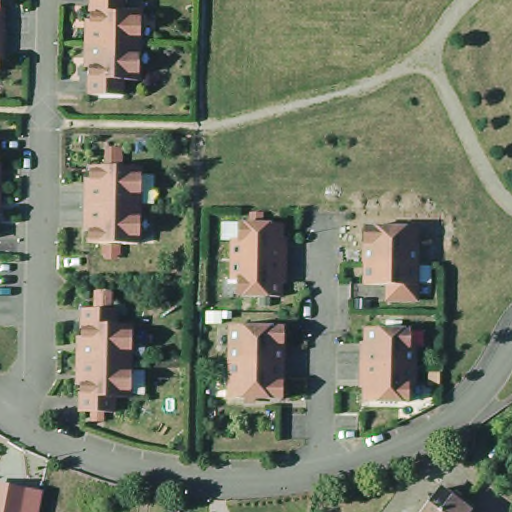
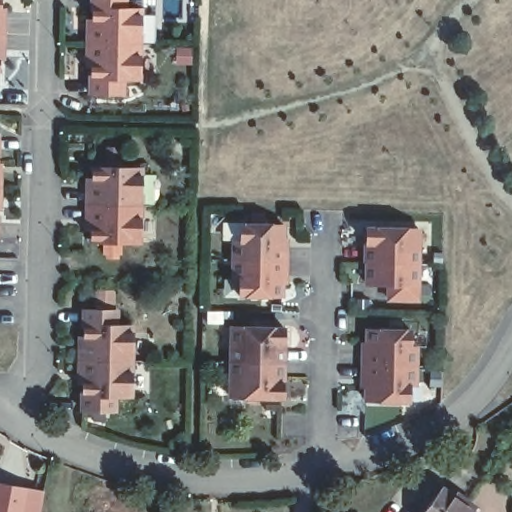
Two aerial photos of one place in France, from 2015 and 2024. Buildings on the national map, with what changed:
unchanged [(83,32),(88,32),(88,0),(122,0),(122,12),(137,12),(137,48),(82,47),(83,32)]
unchanged [(2,38),(0,38),(0,22),(2,22),(2,38)]
unchanged [(1,53),(0,53),(0,38),(2,38),(1,53)]
unchanged [(137,48),(136,84),(120,84),(120,99),(87,98),(87,62),(82,62),(82,47),(137,48)]
unchanged [(4,171),(9,172),(8,186),(0,186),(0,135),(4,135),(4,171)]
unchanged [(92,219),(87,219),(87,203),(87,188),(93,188),(93,167),(137,167),(142,167),(142,205),(141,241),(135,241),(92,240),(92,219)]
unchanged [(7,201),(2,201),(2,237),(0,237),(0,186),(8,186),(7,201)]
unchanged [(284,282),(284,295),(240,294),(240,277),(235,277),(235,258),(235,239),(242,239),(242,222),(285,224),(285,237),(288,237),(288,245),(287,260),(287,275),(287,282),(284,282)]
unchanged [(415,228),(415,263),(393,262),(363,262),(362,262),(362,227),(415,228)]
unchanged [(393,262),(415,263),(414,299),(385,298),(385,284),(362,283),(363,262),(393,262)]
unchanged [(75,349),(80,349),(80,312),(114,313),(114,328),(130,329),(129,365),(75,363),(75,349)]
unchanged [(286,327),(285,362),(285,397),(232,396),(232,361),(233,326),(286,327)]
unchanged [(364,378),(364,363),(365,348),(365,342),(368,342),(369,328),(412,329),(411,345),(417,345),(417,365),(416,385),(410,385),(410,401),(367,400),(367,385),(364,385),(364,378)]
unchanged [(129,365),(127,401),(112,400),(112,416),(79,415),(79,378),(74,378),(75,363),(129,365)]
unchanged [(450,492),(454,487),(462,494),(473,502),(470,507),(477,512),(417,512),(439,483),(450,492)]
unchanged [(0,512),(0,488),(24,492),(20,512),(0,512)]

